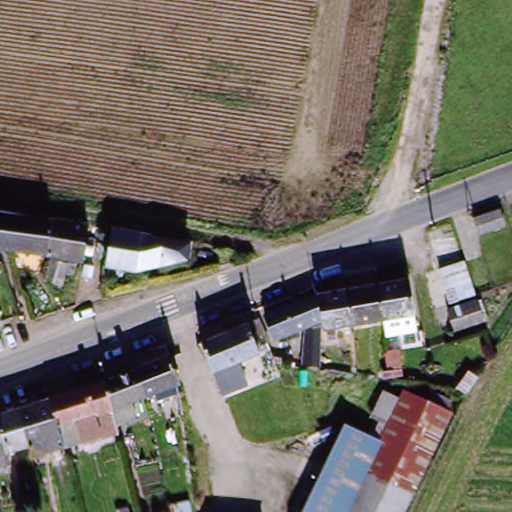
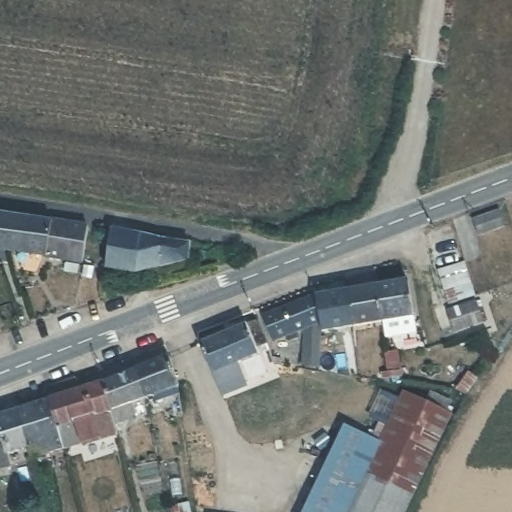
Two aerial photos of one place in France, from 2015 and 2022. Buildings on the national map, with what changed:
unchanged [(495,207),(500,221),(479,228),(474,216),(495,207)]
unchanged [(4,241),(0,240),(0,209),(6,210),(4,241)]
unchanged [(83,258),(61,256),(44,255),(44,246),(4,241),(6,210),(61,219),(81,222),(83,258)]
unchanged [(188,246),(187,258),(143,273),(112,268),(100,266),(105,232),(188,246)]
unchanged [(420,274),(462,260),(472,288),(429,302),(420,274)]
unchanged [(298,367),(300,330),(289,335),(267,342),(261,322),(283,313),(311,303),(333,295),(361,284),(384,276),(396,308),(402,323),(374,333),(374,332),(373,316),(342,326),(317,333),(314,368),(298,367)]
unchanged [(0,327),(0,315),(3,326),(0,327)]
unchanged [(268,362),(248,368),(246,362),(205,377),(194,345),(235,331),(255,323),(262,339),(261,347),(261,362),(268,362)]
unchanged [(157,406),(153,395),(143,397),(134,367),(166,357),(179,399),(157,406)]
unchanged [(27,406),(44,400),(101,380),(134,367),(143,397),(134,401),(137,418),(114,425),(114,427),(116,433),(94,440),(88,417),(65,424),(68,437),(54,441),(44,444),(23,451),(23,450),(21,441),(0,447),(0,416),(13,411),(27,406)]
unchanged [(365,448),(374,429),(366,425),(377,404),(396,412),(399,405),(419,414),(422,407),(436,413),(433,421),(443,426),(435,442),(429,456),(402,512),(344,512),(374,452),(365,448)]
unchanged [(365,448),(374,452),(344,512),(304,512),(341,437),(365,448)]
unchanged [(0,447),(3,461),(0,462),(0,447)]

